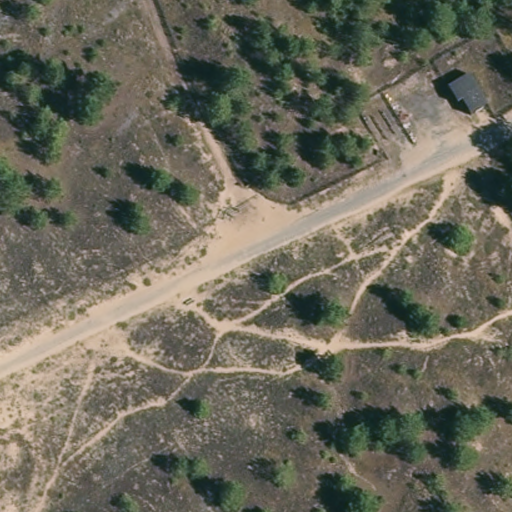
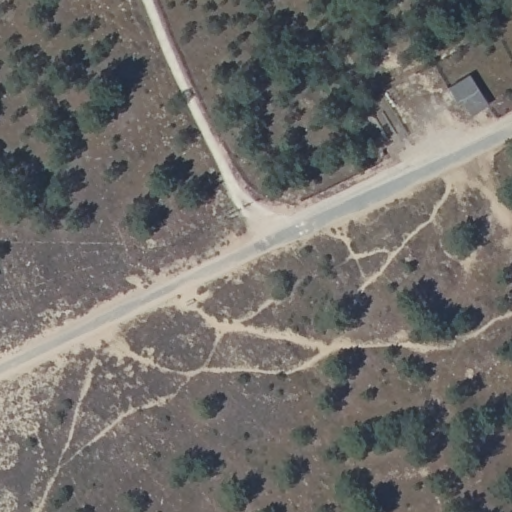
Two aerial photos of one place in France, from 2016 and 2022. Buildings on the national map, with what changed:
unchanged [(473,117),(461,97),(456,102),(445,85),(469,71),(488,107),(473,117)]

